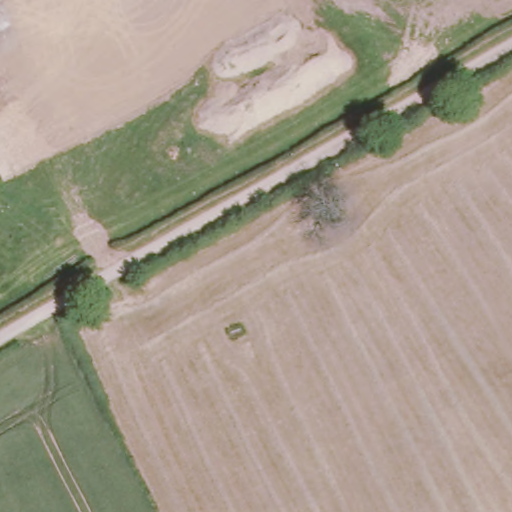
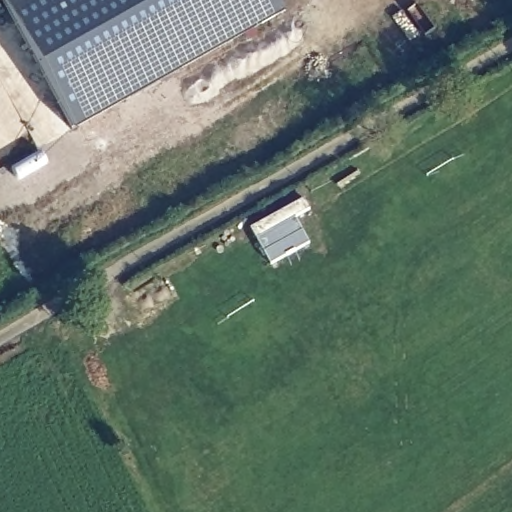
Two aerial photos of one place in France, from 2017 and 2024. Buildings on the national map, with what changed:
demolished [(0,14),(0,0),(26,0),(0,14)]
new [(0,1),(3,0),(272,0),(282,18),(72,134),(0,4),(0,1)]
new [(257,240),(250,228),(304,199),(310,209),(296,218),(310,245),(271,266),(257,240)]

